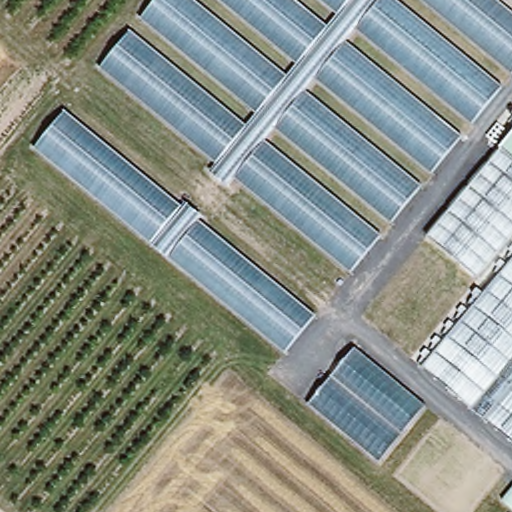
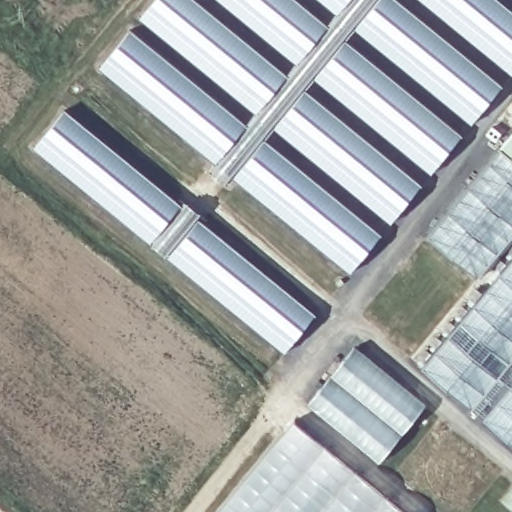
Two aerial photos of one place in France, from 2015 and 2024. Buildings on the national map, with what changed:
unchanged [(494,0),(512,14),(512,72),(351,271),(97,72),(155,0),(494,0)]
unchanged [(63,112),(314,314),(282,357),(34,151),(63,112)]
unchanged [(477,276),(426,234),(501,145),(512,133),(512,235),(477,276)]
unchanged [(422,364),(512,260),(512,440),(422,364)]
unchanged [(306,405),(353,347),(426,405),(378,462),(306,405)]
new [(293,422),(402,512),(220,512),(293,422)]

